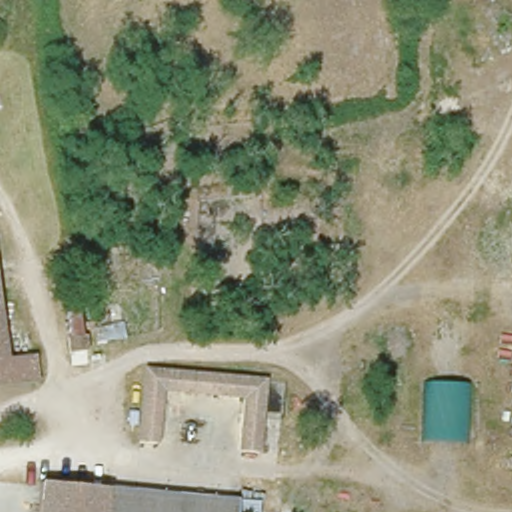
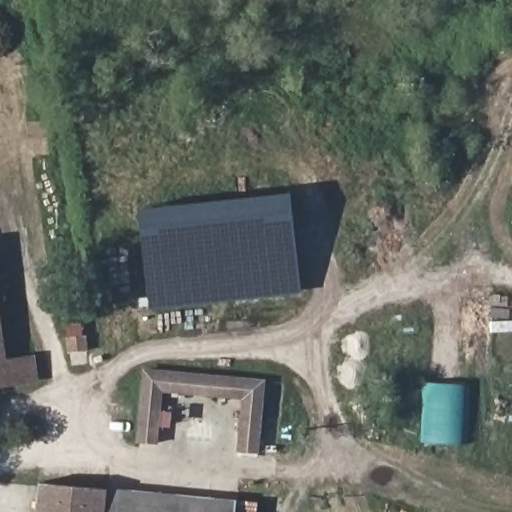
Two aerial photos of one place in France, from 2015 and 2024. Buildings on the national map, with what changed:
new [(150,308),(140,209),(290,194),(299,291),(150,308)]
unchanged [(13,358),(37,355),(42,385),(0,389),(0,274),(13,358)]
unchanged [(165,392),(156,442),(134,441),(142,367),(265,379),(257,452),(235,452),(239,398),(165,392)]
new [(424,382),(468,384),(465,443),(422,440),(424,382)]
unchanged [(43,484),(260,506),(259,512),(40,512),(43,484)]

